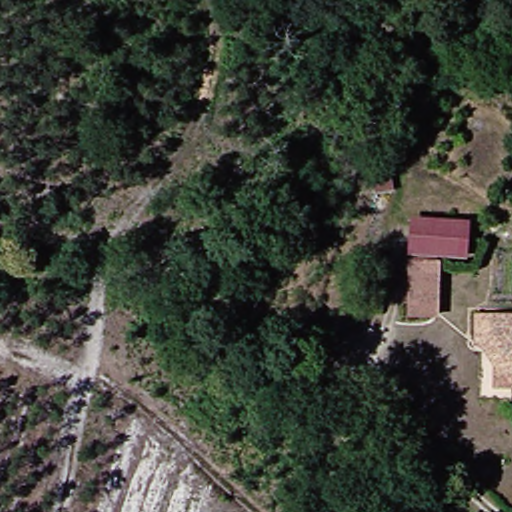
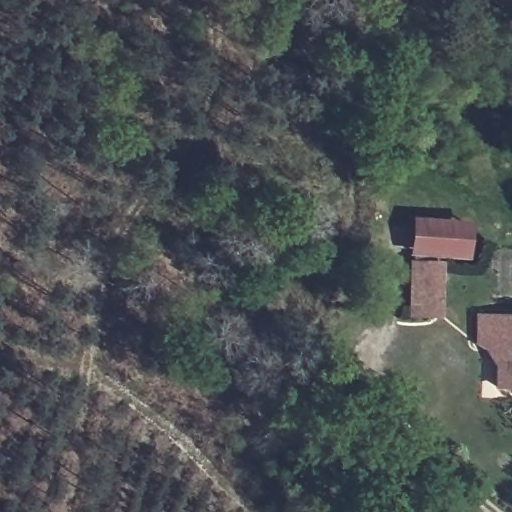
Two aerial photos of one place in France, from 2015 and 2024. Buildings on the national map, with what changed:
unchanged [(405,217),(471,219),(470,258),(437,256),(402,256),(405,217)]
unchanged [(435,261),(433,305),(405,307),(409,258),(435,261)]
unchanged [(512,385),(500,385),(502,345),(482,344),(484,307),(512,311),(512,385)]

